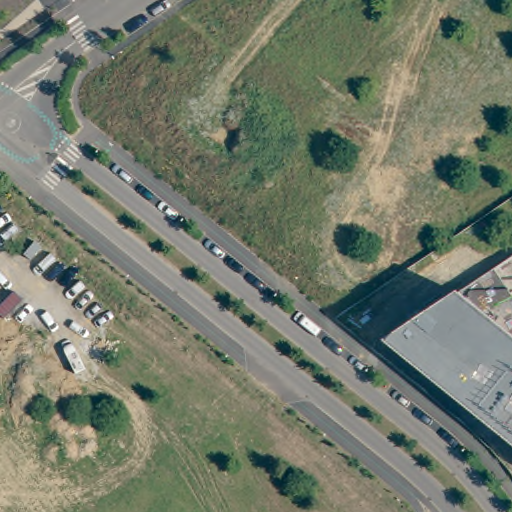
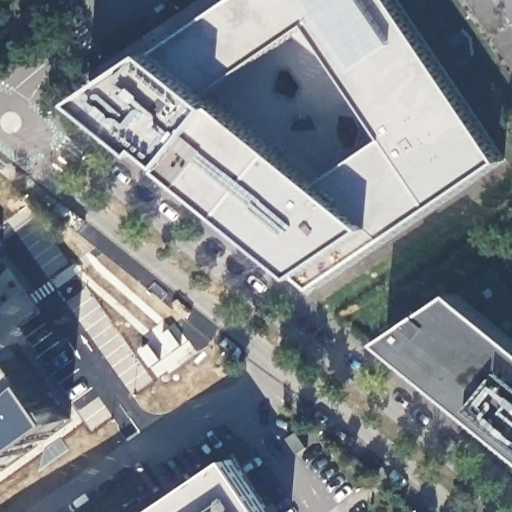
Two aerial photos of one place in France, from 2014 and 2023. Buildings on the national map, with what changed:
new [(321,287),(304,275),(179,167),(156,147),(152,153),(87,100),(159,51),(233,0),(395,0),(504,159),(321,287)]
unchanged [(512,443),(387,342),(459,294),(494,270),(512,296),(512,443)]
new [(271,512),(154,512),(232,455),(271,512)]

